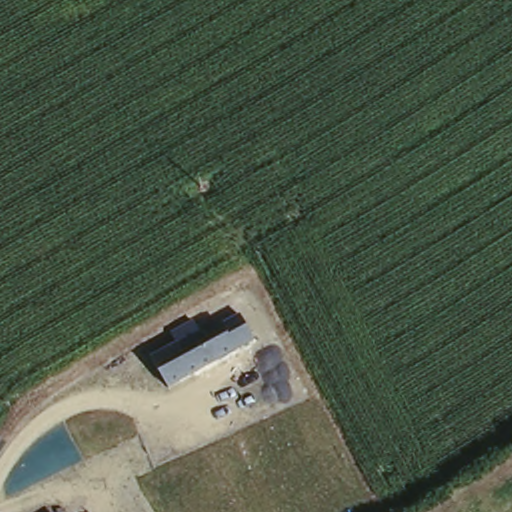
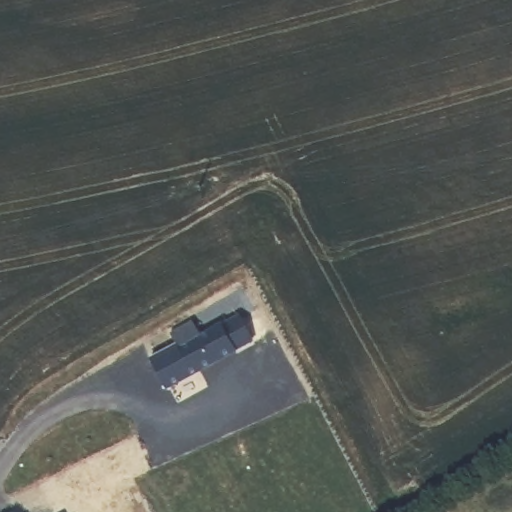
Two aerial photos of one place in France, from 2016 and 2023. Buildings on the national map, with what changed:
unchanged [(179,345),(173,333),(195,323),(200,333),(221,323),(240,313),(256,342),(235,353),(168,387),(153,357),(179,345)]

